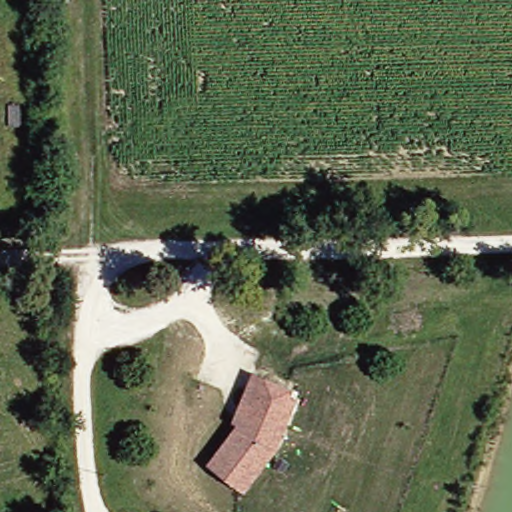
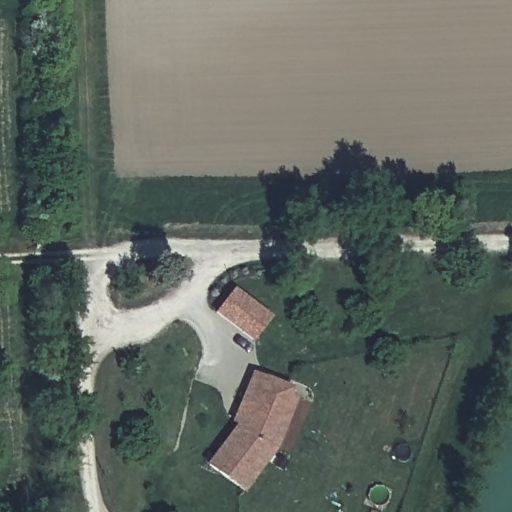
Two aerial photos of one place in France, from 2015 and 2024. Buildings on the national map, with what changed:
new [(216,314),(236,289),(273,317),(254,343),(216,314)]
unchanged [(244,491),(209,465),(238,427),(240,423),(235,421),(240,408),(255,375),(292,390),(289,396),(296,400),(286,424),(276,449),(244,491)]

